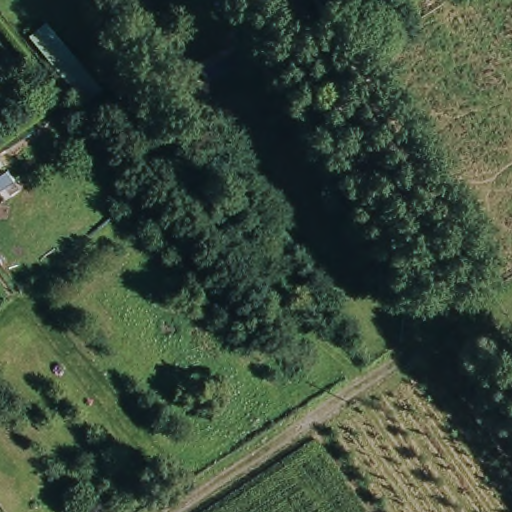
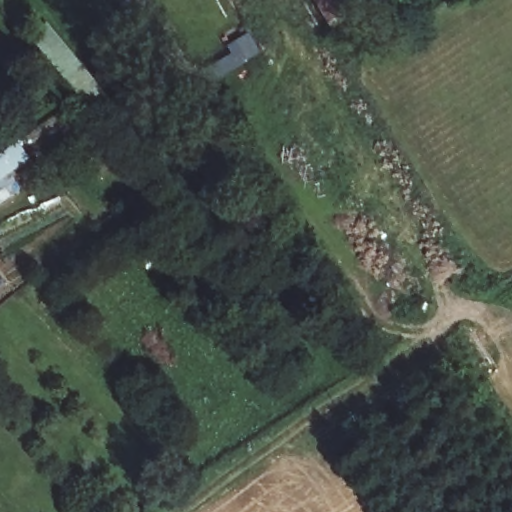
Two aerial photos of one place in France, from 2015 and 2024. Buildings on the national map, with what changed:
unchanged [(370,12),(325,40),(304,0),(363,0),(370,12)]
unchanged [(80,98),(41,49),(26,31),(42,17),(57,35),(97,84),(80,98)]

